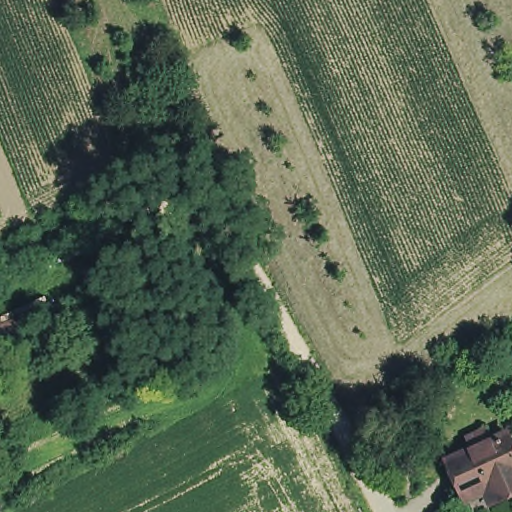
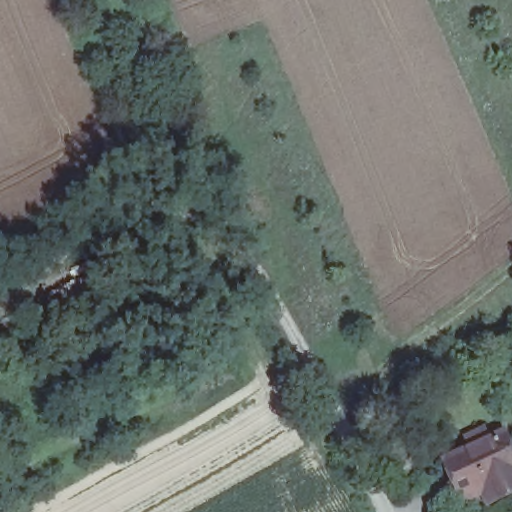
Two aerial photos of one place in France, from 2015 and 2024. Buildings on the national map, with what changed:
unchanged [(501,499),(492,481),(462,493),(447,460),(473,448),(468,437),(484,430),(490,440),(506,433),(512,446),(512,494),(501,499)]

